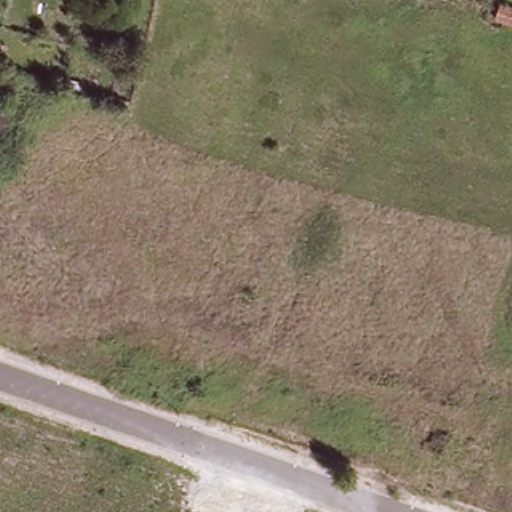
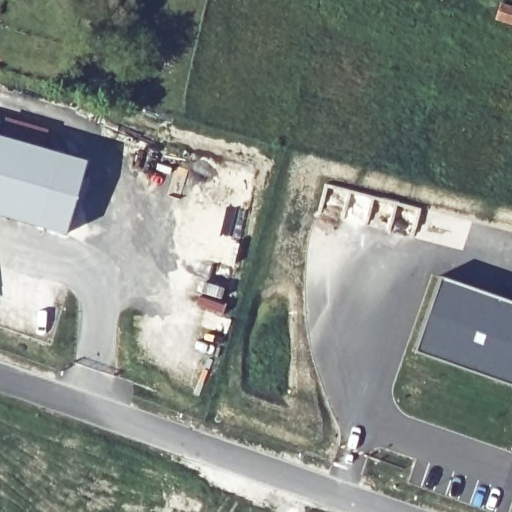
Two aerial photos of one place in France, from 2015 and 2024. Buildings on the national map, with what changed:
new [(0,138),(57,154),(36,226),(0,217),(0,138)]
new [(512,301),(512,385),(414,352),(440,276),(512,301)]

